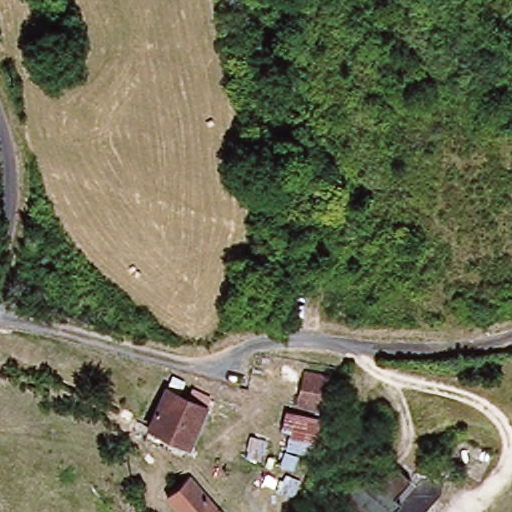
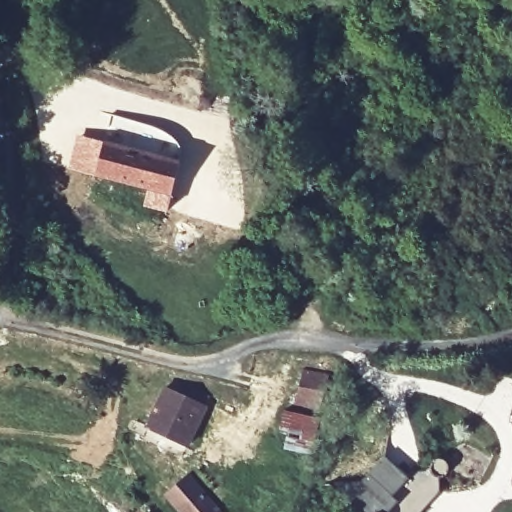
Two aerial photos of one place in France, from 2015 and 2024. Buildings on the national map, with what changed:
new [(76,133),(181,159),(168,213),(143,207),(146,191),(68,169),(76,133)]
unchanged [(289,432),(278,428),(284,405),(296,408),(307,367),(334,373),(309,461),(283,454),(289,432)]
unchanged [(199,420),(176,447),(146,422),(169,395),(199,420)]
unchanged [(364,510),(346,492),(389,457),(407,470),(436,456),(453,434),(466,434),(471,447),(457,474),(424,512),(364,512),(364,510)]
unchanged [(169,497),(189,479),(217,512),(182,512),(169,497)]

